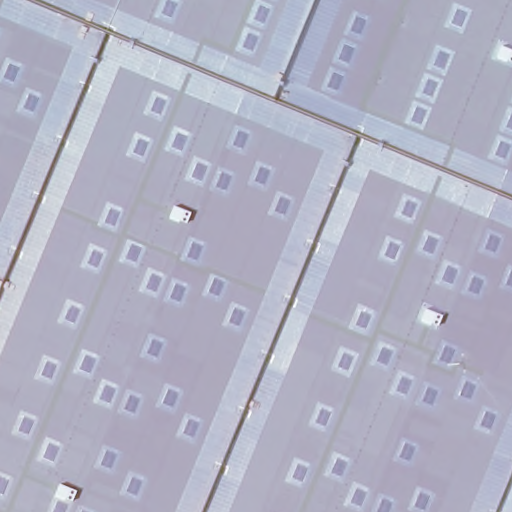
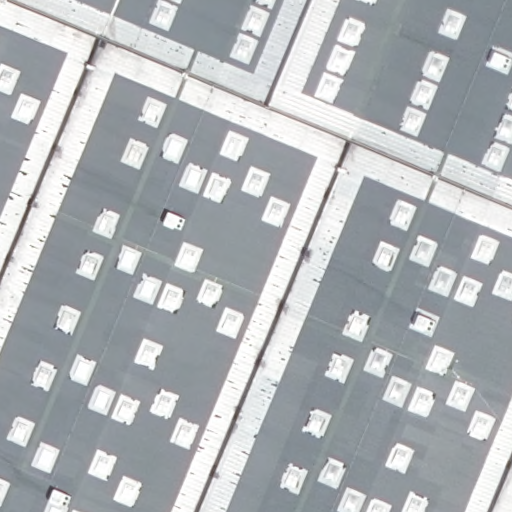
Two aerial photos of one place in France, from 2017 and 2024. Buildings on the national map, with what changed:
unchanged [(512,512),(0,512),(0,0),(512,0),(512,512)]

